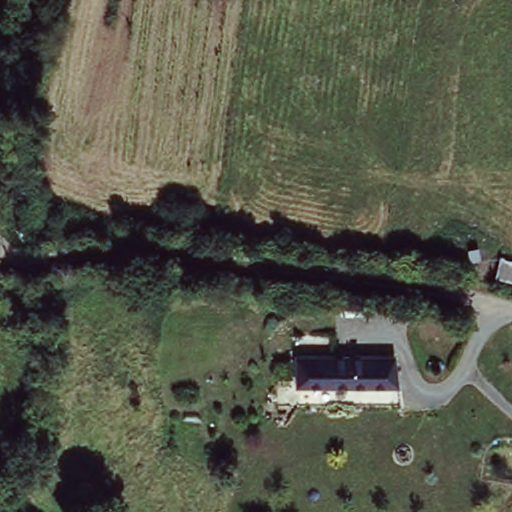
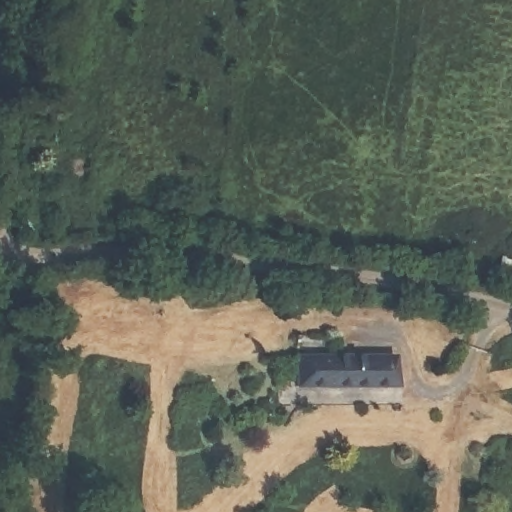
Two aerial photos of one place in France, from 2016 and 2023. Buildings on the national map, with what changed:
unchanged [(301,355),(327,353),(355,353),(401,352),(402,382),(336,382),(329,382),(303,383),(301,355)]

